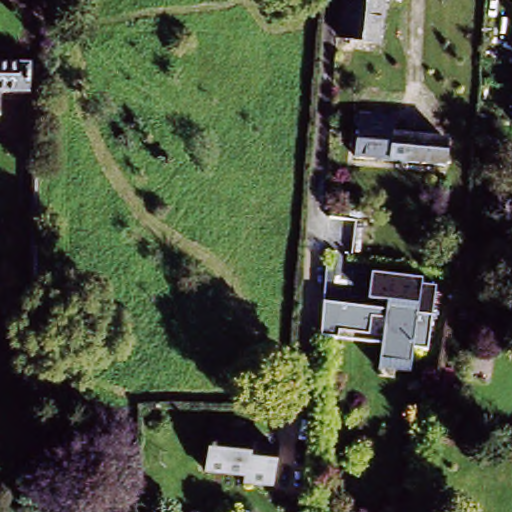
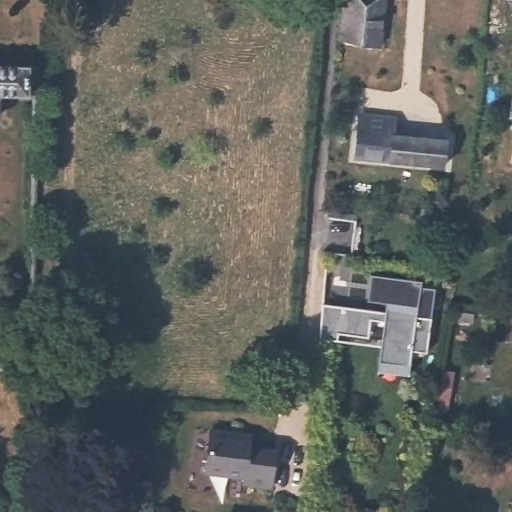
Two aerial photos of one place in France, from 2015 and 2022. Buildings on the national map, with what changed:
unchanged [(377,38),(342,32),(345,0),(382,0),(377,38)]
unchanged [(35,64),(35,69),(34,92),(0,91),(0,63),(29,64),(35,64)]
unchanged [(508,132),(512,116),(512,132),(508,132)]
unchanged [(444,136),(441,162),(352,153),(355,128),(444,136)]
unchanged [(378,366),(379,357),(383,321),(370,319),(369,335),(340,331),(339,340),(322,337),(326,303),(385,310),(385,306),(387,299),(420,303),(419,309),(418,314),(434,317),(429,348),(414,346),(412,361),(412,371),(378,366)]
unchanged [(252,430),(251,440),(276,444),(272,481),(244,478),(245,471),(207,466),(212,424),(252,430)]

